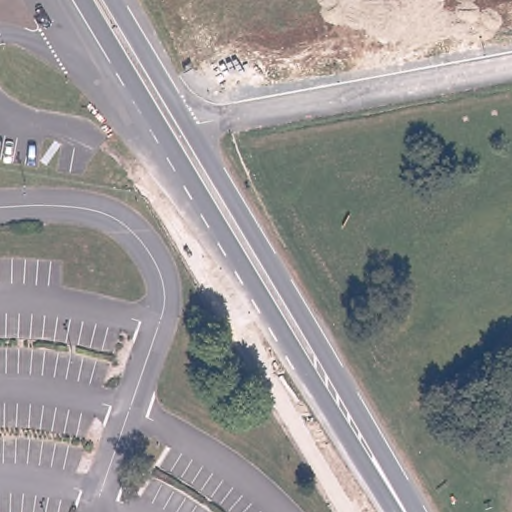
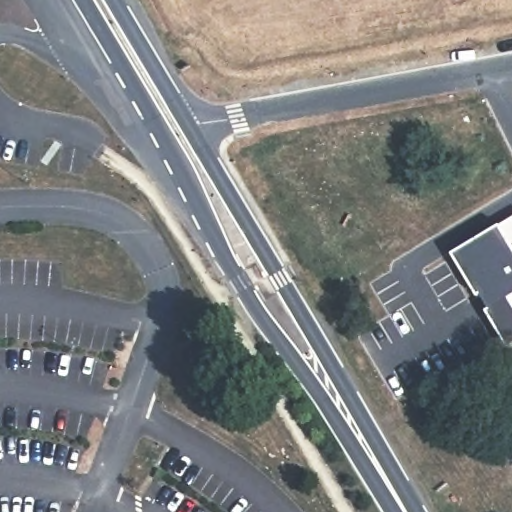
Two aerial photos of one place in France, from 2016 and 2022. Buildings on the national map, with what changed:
new [(501,225),(512,218),(512,345),(509,347),(488,311),(490,309),(482,295),(479,297),(452,253),(500,224),(501,225)]

